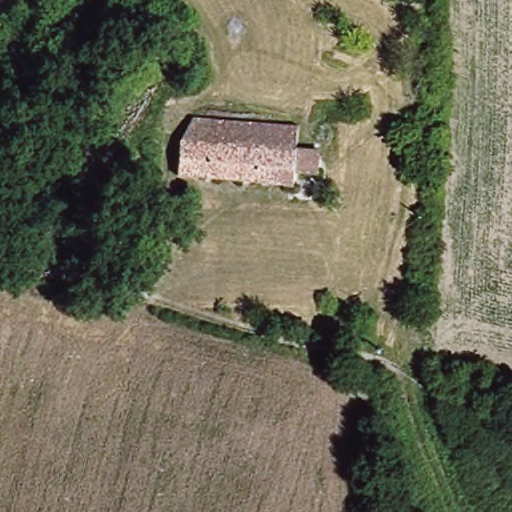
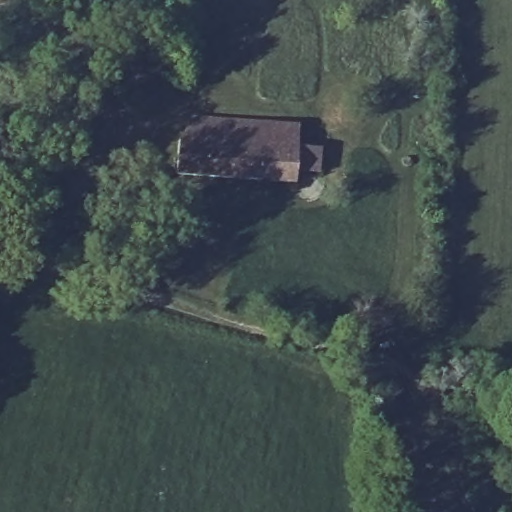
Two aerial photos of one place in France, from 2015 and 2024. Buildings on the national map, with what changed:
unchanged [(301,122),(299,146),(322,147),(320,169),(298,167),(296,181),(179,174),(182,142),(195,117),(301,122)]

